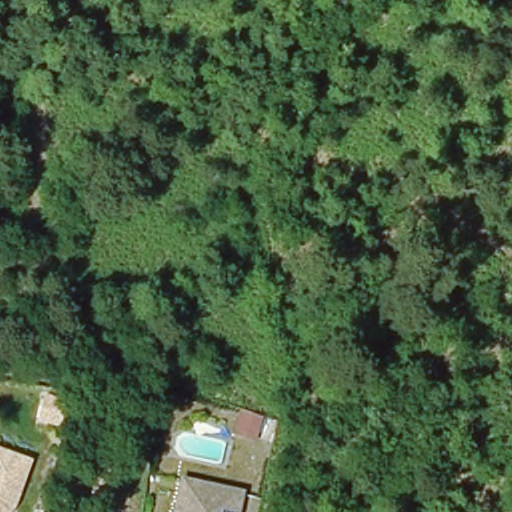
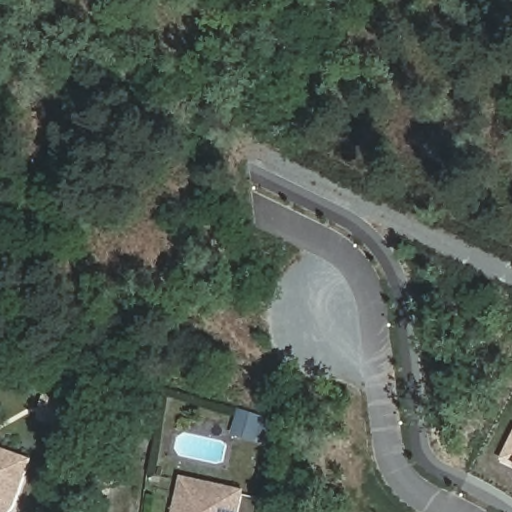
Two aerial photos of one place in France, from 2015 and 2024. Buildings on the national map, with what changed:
new [(512,465),(500,461),(512,437),(512,465)]
unchanged [(34,460),(17,507),(12,512),(0,512),(0,448),(34,460)]
unchanged [(242,495),(238,512),(177,512),(183,482),(242,495)]

